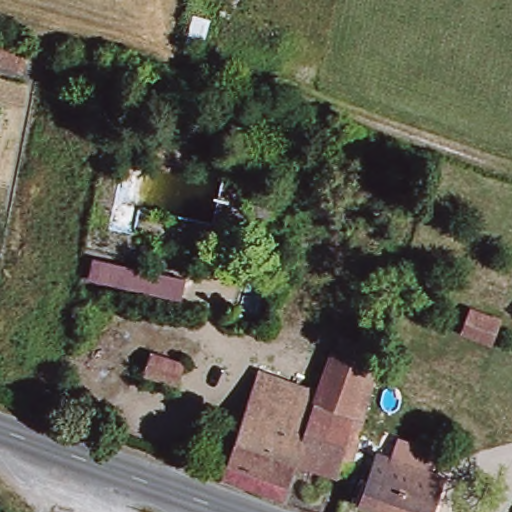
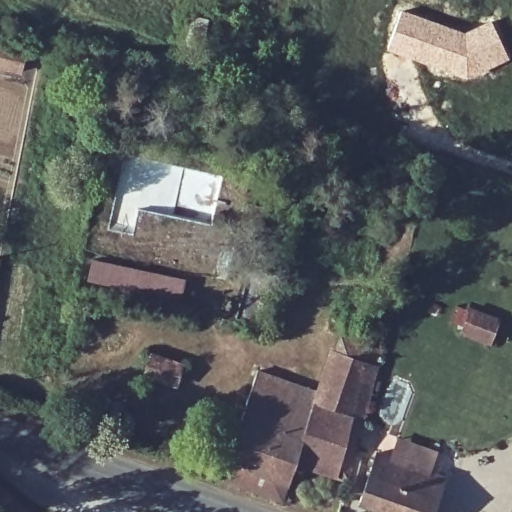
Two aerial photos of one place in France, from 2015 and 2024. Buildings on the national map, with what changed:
new [(398,9),(463,30),(490,19),(509,59),(463,81),(463,83),(437,75),(383,52),(398,9)]
unchanged [(277,218),(252,209),(256,194),(281,200),(277,218)]
unchanged [(177,296),(91,274),(96,254),(183,276),(177,296)]
unchanged [(491,317),(482,338),(457,330),(465,309),(491,317)]
unchanged [(367,419),(317,404),(315,411),(268,397),(272,386),(252,380),(256,367),(321,384),(332,344),(339,345),(344,329),(388,340),(367,419)]
unchanged [(170,382),(142,372),(148,355),(177,363),(170,382)]
unchanged [(297,462),(291,481),(227,462),(252,380),(272,386),(268,397),(315,411),(317,404),(367,419),(366,426),(352,477),(297,462)]
unchanged [(450,473),(436,512),(409,512),(367,498),(383,451),(450,473)]
unchanged [(501,458),(494,475),(486,470),(492,454),(501,458)]
unchanged [(227,462),(291,481),(283,503),(221,480),(227,462)]

